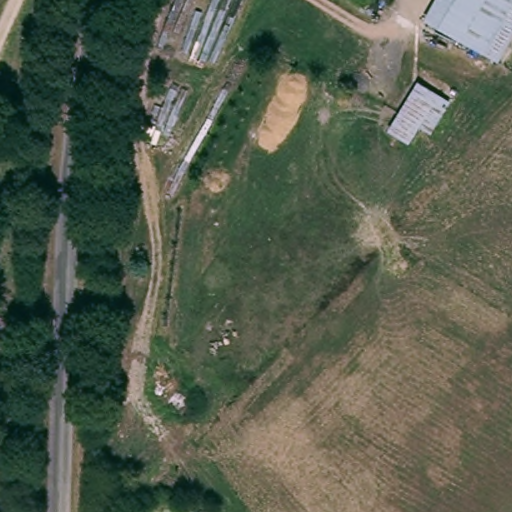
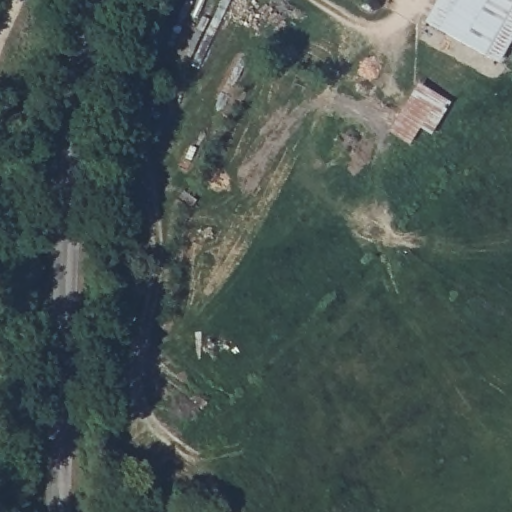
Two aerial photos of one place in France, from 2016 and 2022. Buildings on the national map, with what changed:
unchanged [(512,44),(501,63),(423,21),(435,0),(512,0),(512,44)]
unchanged [(436,107),(414,147),(390,130),(411,94),(436,107)]

